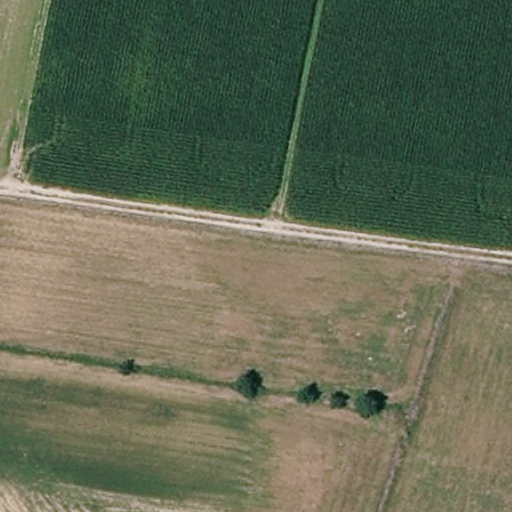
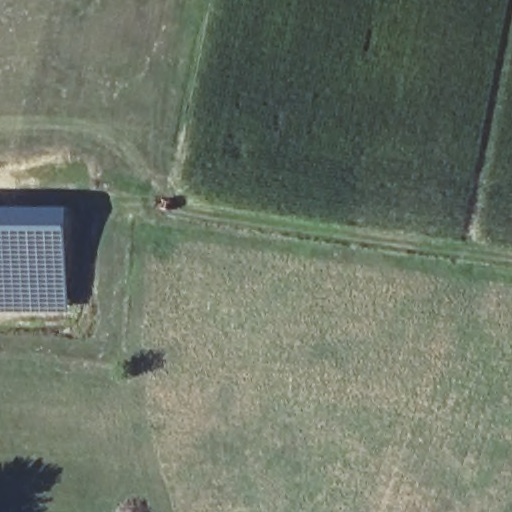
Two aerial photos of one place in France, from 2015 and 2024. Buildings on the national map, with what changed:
new [(68,208),(68,312),(0,312),(0,209),(68,208)]

